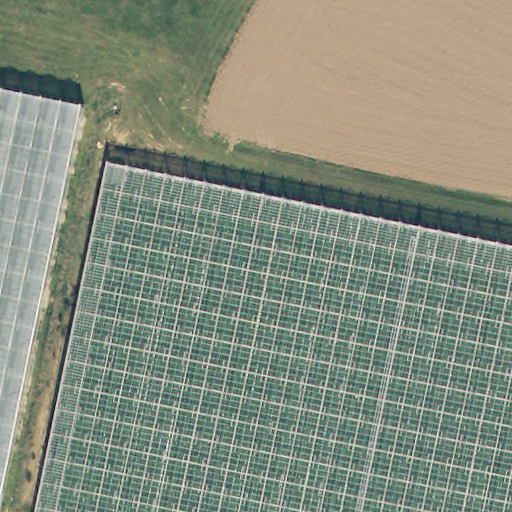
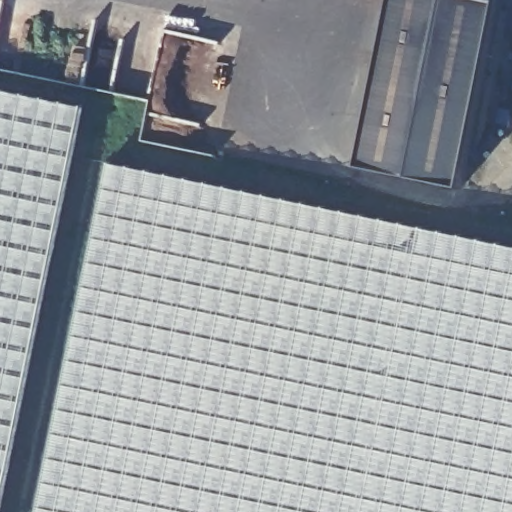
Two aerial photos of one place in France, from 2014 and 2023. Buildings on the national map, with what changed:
new [(461,186),(361,164),(397,0),(500,0),(499,1),(461,186)]
unchanged [(1,512),(0,512),(0,90),(85,107),(1,512)]
unchanged [(107,164),(512,247),(512,512),(36,512),(107,164)]

